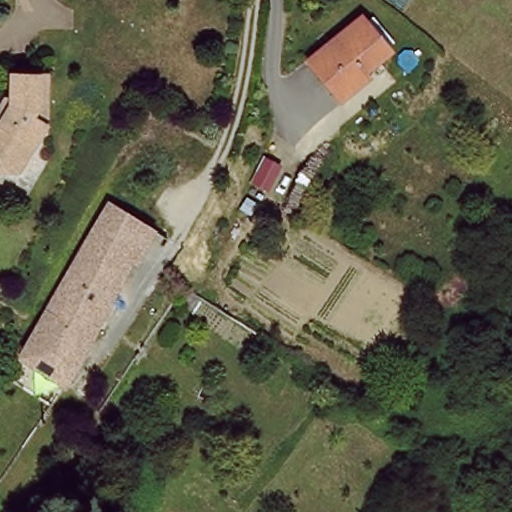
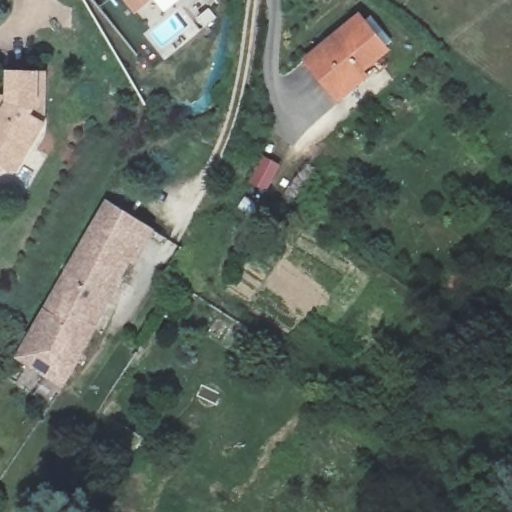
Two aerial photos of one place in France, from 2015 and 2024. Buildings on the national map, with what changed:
new [(137,14),(125,0),(153,0),(148,4),(137,14)]
unchanged [(344,104),(336,93),(308,57),(363,12),(392,47),(365,70),(372,79),(344,104)]
unchanged [(5,113),(4,81),(33,80),(42,79),(44,136),(28,161),(22,172),(5,172),(0,172),(0,121),(5,113)]
unchanged [(108,204),(148,226),(131,259),(91,235),(108,204)]
unchanged [(131,259),(82,358),(62,388),(17,358),(91,235),(131,259)]
unchanged [(159,287),(155,284),(166,271),(176,277),(186,282),(165,313),(149,303),(159,287)]

